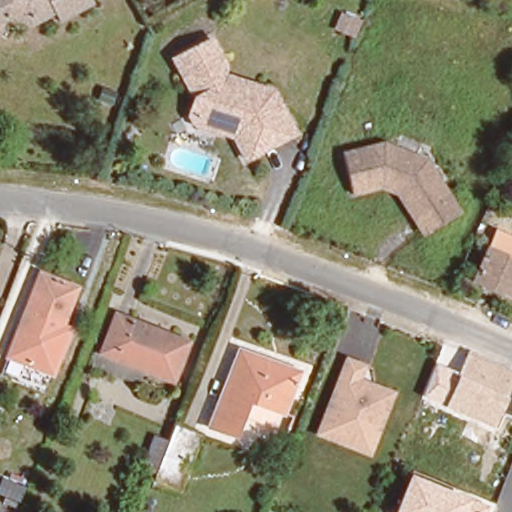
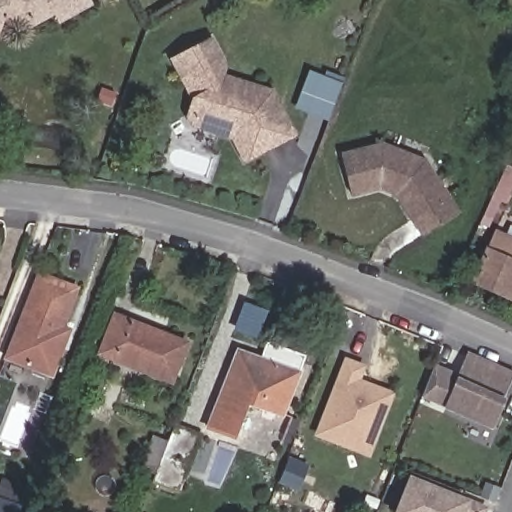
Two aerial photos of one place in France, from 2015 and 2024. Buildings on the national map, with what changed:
unchanged [(84,0),(86,4),(55,20),(51,13),(25,27),(0,19),(0,0),(84,0)]
unchanged [(332,32),(341,9),(365,20),(356,41),(332,32)]
unchanged [(190,126),(184,115),(189,98),(168,61),(206,39),(210,45),(221,65),(217,75),(244,84),(268,91),(281,115),(292,134),(242,161),(229,139),(209,132),(190,126)]
new [(327,120),(295,109),(309,70),(341,82),(327,120)]
unchanged [(375,188),(368,189),(348,195),(336,157),(376,144),(420,160),(441,195),(440,197),(450,212),(423,229),(413,214),(409,216),(397,198),(394,193),(375,188)]
unchanged [(488,253),(491,254),(498,239),(512,246),(512,252),(507,262),(512,264),(512,302),(473,284),(488,253)]
unchanged [(13,341),(18,329),(39,275),(75,289),(53,343),(49,354),(13,341)]
unchanged [(180,347),(165,384),(96,358),(110,320),(180,347)]
unchanged [(291,378),(276,417),(242,404),(228,438),(204,432),(234,356),(291,378)]
unchanged [(427,402),(439,374),(457,383),(469,356),(512,376),(512,385),(492,431),(427,402)]
unchanged [(346,446),(314,434),(342,360),(357,366),(352,380),(388,394),(372,434),(365,453),(346,446)]
unchanged [(144,462),(153,436),(169,442),(175,426),(200,436),(178,491),(154,481),(156,474),(142,467),(144,462)]
unchanged [(410,474),(470,499),(488,507),(487,512),(395,512),(410,474)]

